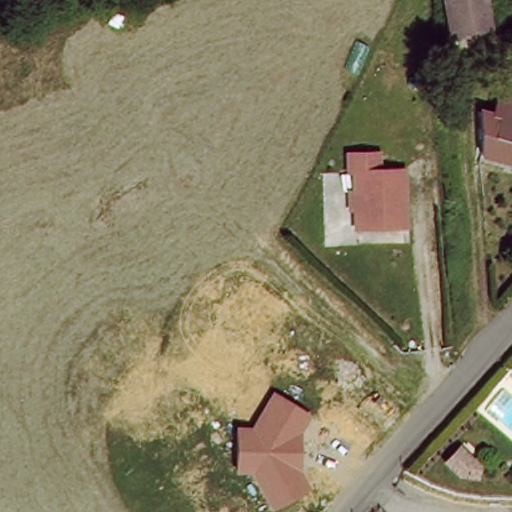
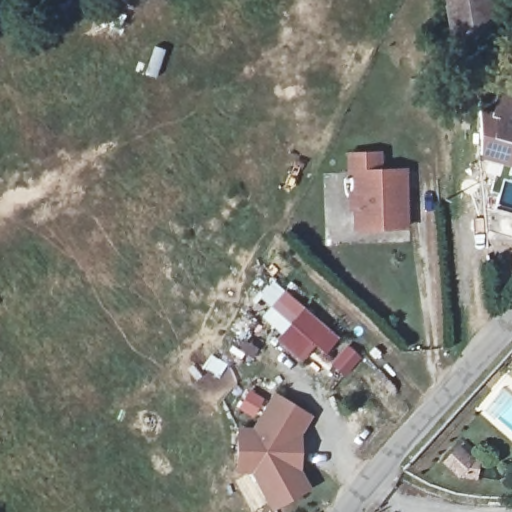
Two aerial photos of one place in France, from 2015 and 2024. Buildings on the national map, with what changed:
unchanged [(494,22),(454,29),(450,0),(491,0),(494,22)]
unchanged [(144,11),(146,33),(104,37),(103,15),(144,11)]
unchanged [(484,158),(483,158),(483,115),(484,115),(496,117),(504,90),(512,93),(512,166),(484,158)]
unchanged [(407,231),(358,232),(356,175),(351,175),(351,157),(383,156),(383,173),(406,173),(407,231)]
new [(339,340),(328,354),(316,345),(303,362),(276,340),(289,324),(272,308),(284,292),(339,340)]
unchanged [(252,428),(274,392),(313,416),(300,435),(301,470),(310,490),(270,512),(251,475),(234,475),(236,426),(252,428)]
unchanged [(463,480),(449,468),(463,455),(476,467),(482,468),(479,483),(463,480)]

